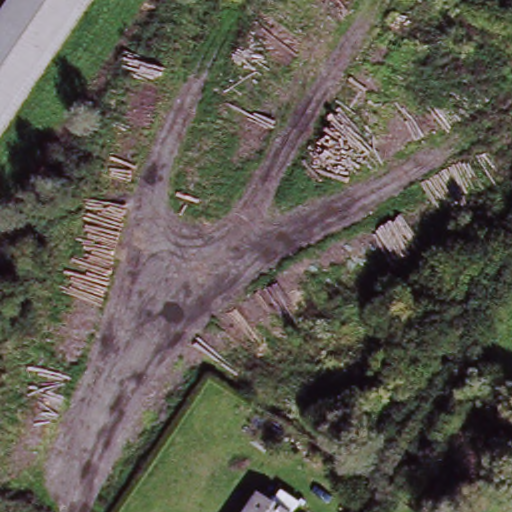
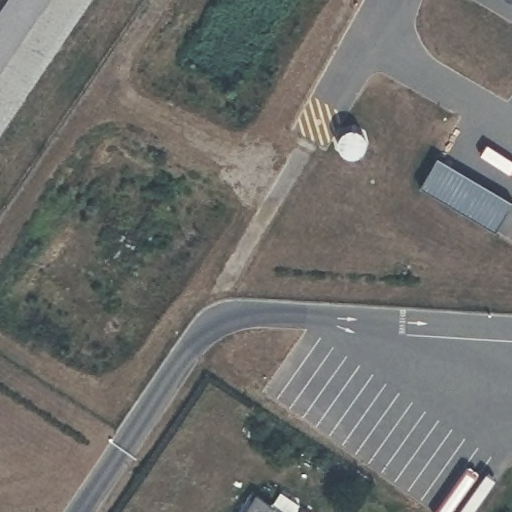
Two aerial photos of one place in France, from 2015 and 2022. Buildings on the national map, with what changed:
unchanged [(18,0),(90,0),(0,133),(0,27),(18,0)]
new [(509,0),(512,0),(512,2),(509,0)]
new [(512,200),(512,204),(495,232),(420,187),(437,157),(512,200)]
unchanged [(280,512),(244,512),(255,495),(280,512)]

